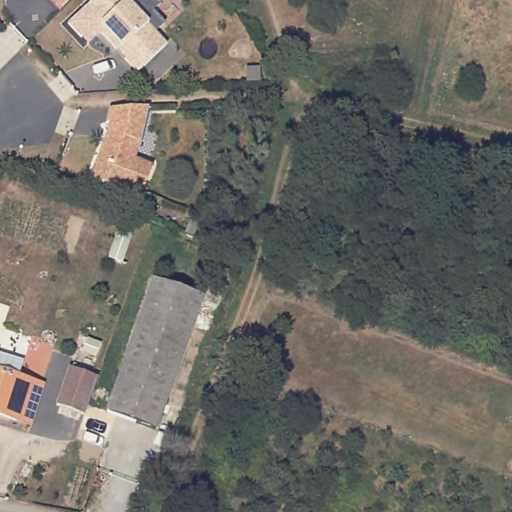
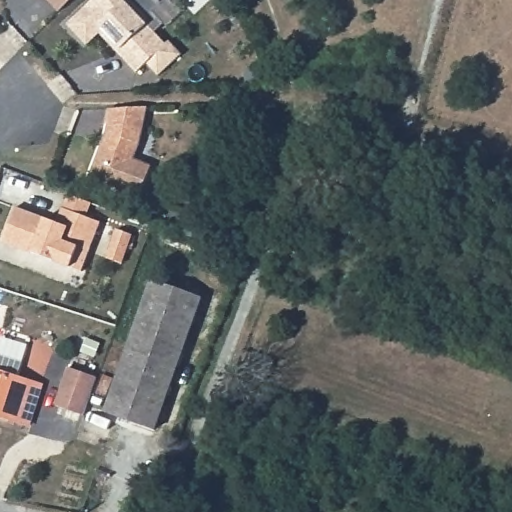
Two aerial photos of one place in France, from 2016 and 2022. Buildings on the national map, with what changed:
unchanged [(99,31),(100,24),(84,7),(91,0),(133,0),(133,1),(149,17),(148,24),(167,43),(137,71),(124,57),(115,47),(99,31)]
unchanged [(147,105),(140,141),(134,157),(152,164),(140,195),(122,187),(122,188),(90,176),(102,143),(110,140),(111,133),(107,132),(109,123),(106,122),(109,107),(147,105)]
new [(19,207),(61,222),(66,207),(104,222),(85,271),(6,241),(19,207)]
unchanged [(117,232),(132,237),(122,265),(107,260),(117,232)]
unchanged [(153,279),(204,297),(156,429),(105,411),(153,279)]
unchanged [(25,377),(47,384),(35,423),(0,411),(0,350),(2,351),(30,361),(25,377)]
unchanged [(256,354),(275,362),(267,381),(236,369),(241,358),(252,362),(256,354)]
unchanged [(71,366),(99,376),(95,388),(85,414),(57,404),(71,366)]

